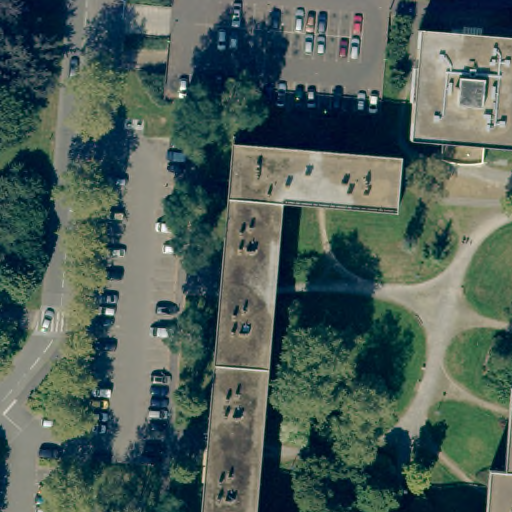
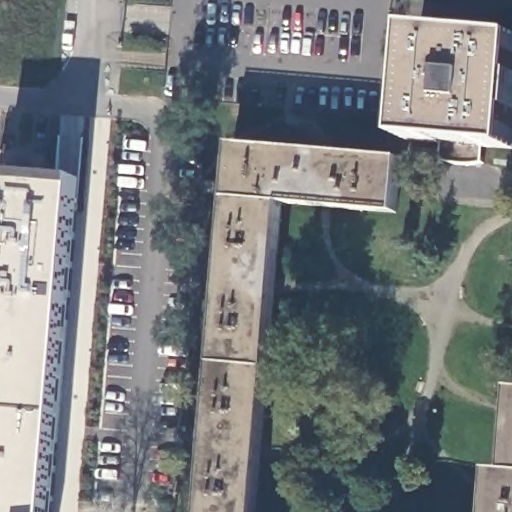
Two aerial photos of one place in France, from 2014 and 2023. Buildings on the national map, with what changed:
unchanged [(439,136),(408,134),(417,25),(449,28),(484,31),(491,32),(512,33),(512,141),(456,138),(439,136)]
unchanged [(208,422),(219,293),(222,259),(232,140),(316,148),(333,149),(399,154),(394,208),(281,199),(276,266),(273,298),(262,430),(259,463),(255,512),(200,512),(205,456),(208,422)]
new [(78,179),(47,512),(0,512),(0,220),(4,172),(78,179)]
unchanged [(486,466),(501,467),(505,417),(508,384),(512,384),(512,512),(482,512),(483,500),(486,466)]

